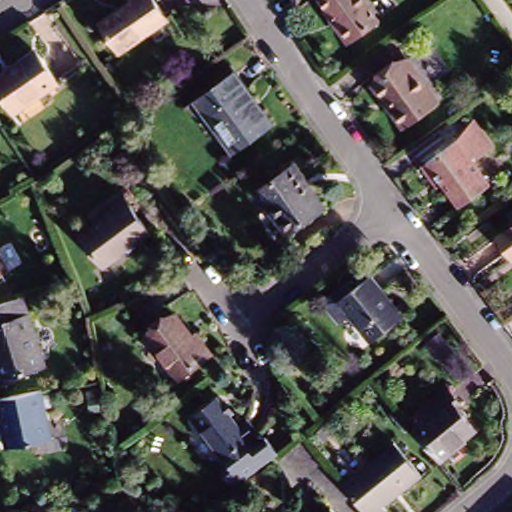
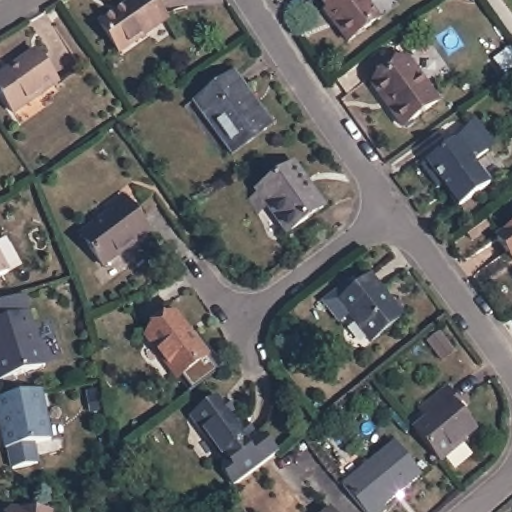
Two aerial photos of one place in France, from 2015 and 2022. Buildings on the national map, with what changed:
unchanged [(118,15),(131,6),(128,1),(130,0),(152,0),(160,11),(166,20),(120,55),(100,25),(115,14),(118,15)]
unchanged [(345,46),(333,30),(336,25),(317,0),(358,0),(375,24),(345,46)]
unchanged [(56,84),(13,115),(0,95),(0,79),(35,54),(56,84)]
unchanged [(405,61),(435,104),(400,130),(388,115),(393,110),(375,84),(405,61)]
unchanged [(235,75),(270,130),(227,156),(192,101),(235,75)]
unchanged [(455,143),(470,116),(491,144),(476,155),(472,152),(469,154),(491,182),(461,205),(445,184),(440,187),(423,165),(430,161),(455,143)]
unchanged [(295,164),(311,186),(327,207),(290,235),(271,210),(262,217),(247,199),(257,191),(295,164)]
unchanged [(105,222),(101,216),(122,201),(139,225),(149,236),(105,268),(82,238),(105,222)]
unchanged [(505,254),(492,237),(512,222),(512,260),(510,261),(505,254)]
unchanged [(0,280),(0,256),(8,276),(0,280)]
unchanged [(368,278),(400,320),(366,345),(336,301),(368,278)]
unchanged [(0,381),(0,304),(16,300),(25,298),(28,311),(31,324),(43,370),(0,381)]
unchanged [(144,341),(175,319),(191,340),(197,335),(211,355),(205,359),(176,382),(144,341)]
unchanged [(431,420),(424,412),(451,390),(467,407),(460,413),(466,421),(470,420),(480,431),(440,465),(435,458),(415,435),(431,420)]
unchanged [(52,443),(5,451),(0,419),(0,398),(41,391),(52,443)]
unchanged [(223,405),(243,433),(248,430),(258,443),(269,446),(280,463),(237,491),(225,475),(227,465),(197,421),(223,405)]
unchanged [(343,492),(396,449),(422,482),(388,512),(361,512),(343,492)]
unchanged [(55,512),(13,512),(13,508),(55,512)]
unchanged [(332,511),(333,512),(331,512),(332,511)]

